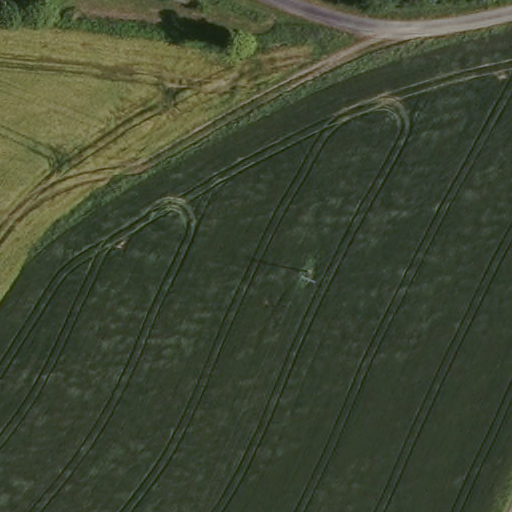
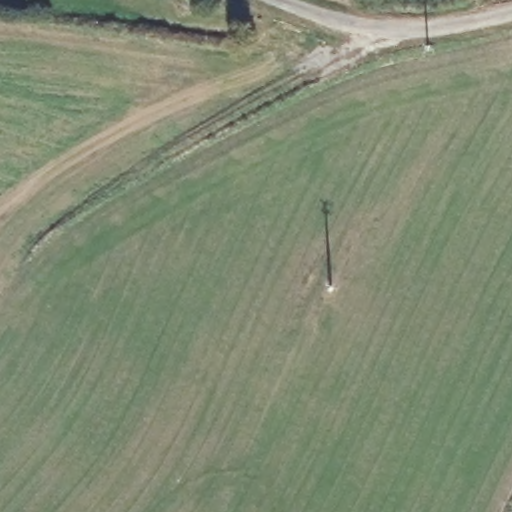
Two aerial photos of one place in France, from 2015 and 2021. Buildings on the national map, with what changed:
[]

